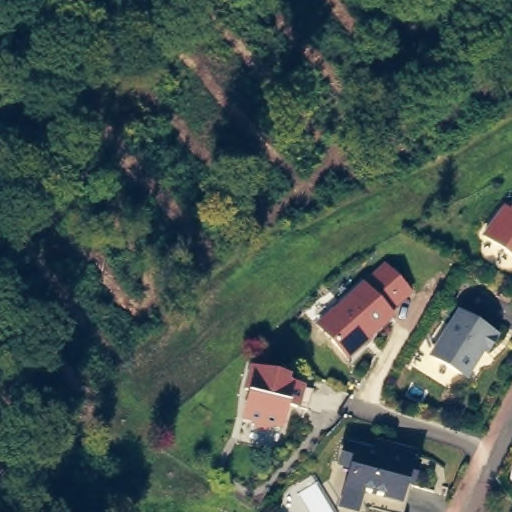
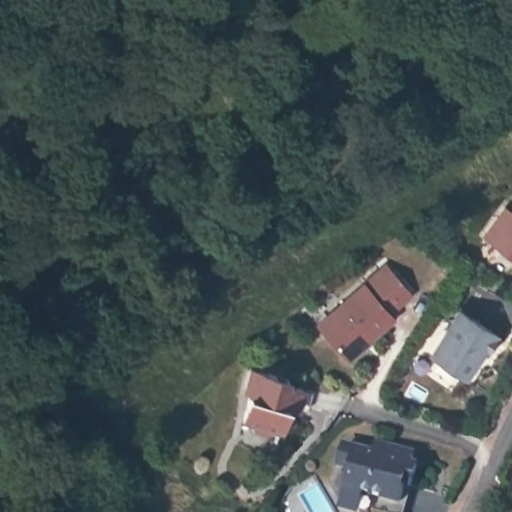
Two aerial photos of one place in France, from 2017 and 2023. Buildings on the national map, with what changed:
unchanged [(505,207),(512,211),(512,256),(486,236),(505,207)]
unchanged [(413,296),(392,315),(396,320),(350,360),(321,327),(389,268),(413,296)]
unchanged [(462,315),(501,339),(490,357),(483,353),(476,365),(477,366),(471,376),(464,378),(435,359),(462,315)]
unchanged [(279,431),(272,428),(266,432),(252,428),(249,422),(242,420),(249,393),(244,392),(250,370),(273,376),(286,380),(284,385),(311,392),(306,412),(286,407),(279,431)]
unchanged [(342,462),(348,442),(377,450),(380,441),(411,450),(417,451),(415,461),(421,463),(415,483),(409,481),(403,500),(373,491),(350,485),(348,491),(347,491),(349,485),(355,465),(342,462)]

